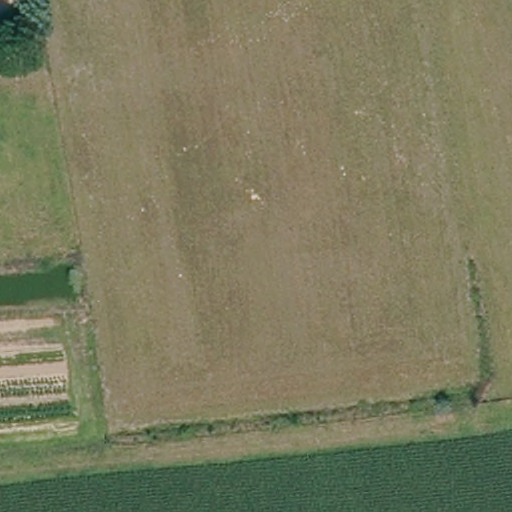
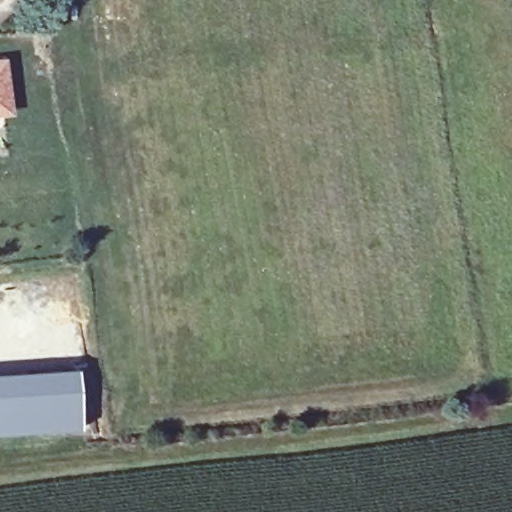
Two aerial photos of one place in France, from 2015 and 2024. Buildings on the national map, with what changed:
new [(4,81),(0,81),(0,60),(1,60),(4,81)]
new [(75,367),(77,428),(0,434),(0,372),(75,367)]

